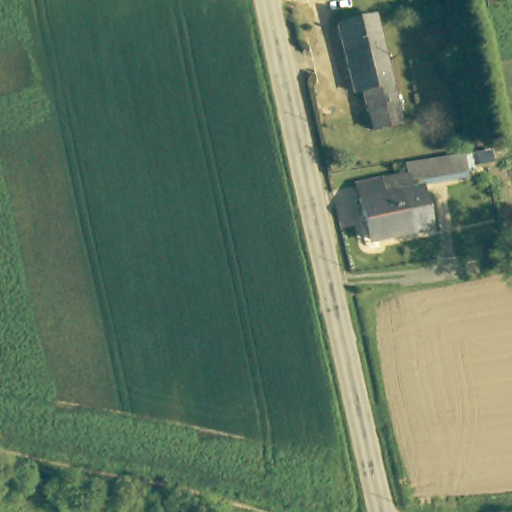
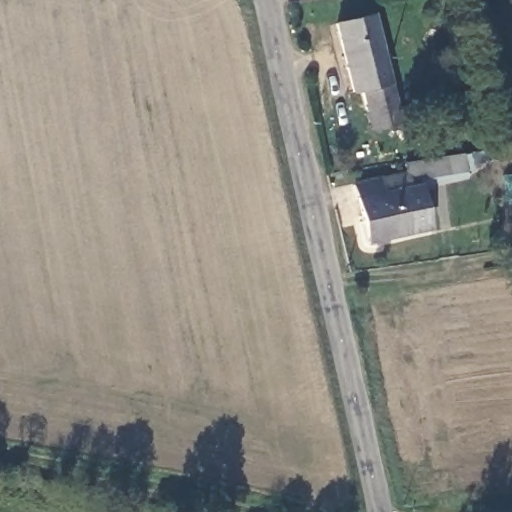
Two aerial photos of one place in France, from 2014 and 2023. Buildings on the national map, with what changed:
unchanged [(363,131),(360,112),(356,92),(348,94),(335,34),(333,24),(372,16),(373,24),(391,106),(395,125),(363,131)]
unchanged [(418,184),(426,234),(361,244),(352,183),(402,176),(399,160),(421,156),(424,176),(402,179),(403,186),(418,184)]

